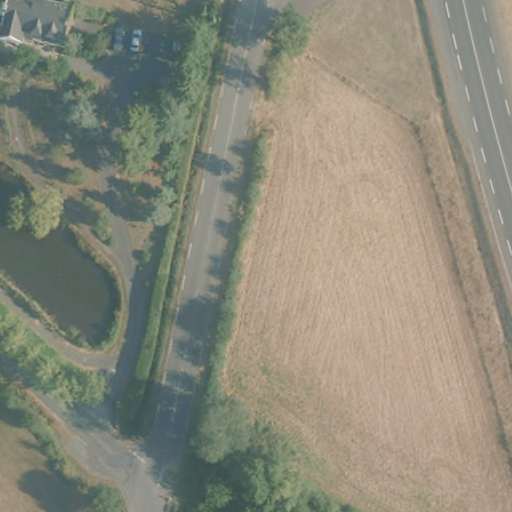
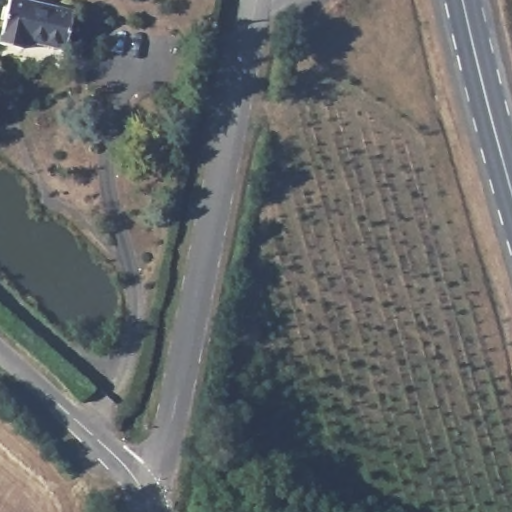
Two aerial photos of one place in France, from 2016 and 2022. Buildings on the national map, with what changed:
unchanged [(75,15),(67,54),(24,45),(22,52),(2,48),(12,2),(75,15)]

